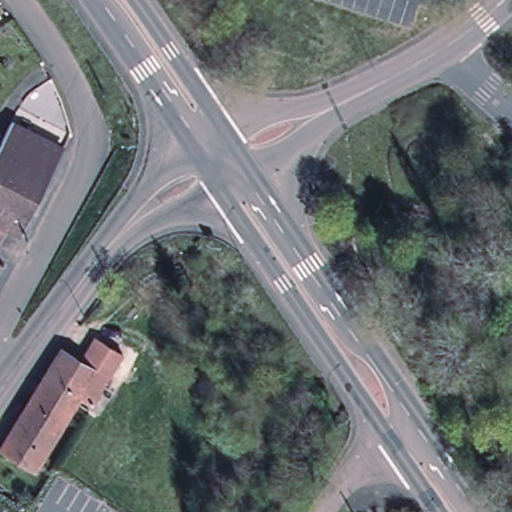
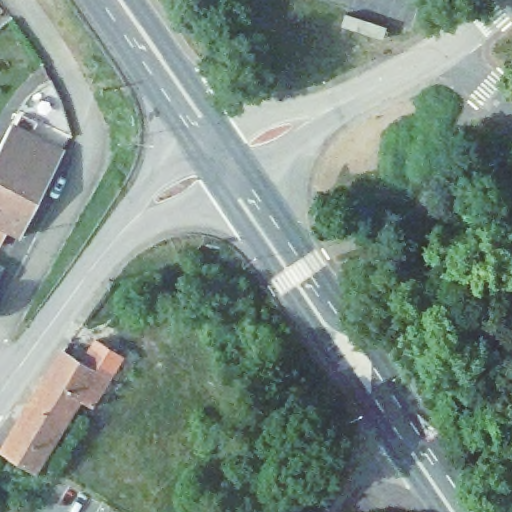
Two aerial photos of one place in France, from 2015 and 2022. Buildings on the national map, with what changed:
unchanged [(15,120),(68,147),(26,230),(12,222),(4,240),(0,238),(0,149),(15,120)]
unchanged [(4,271),(0,279),(0,270),(4,271)]
unchanged [(80,367),(95,344),(123,361),(92,412),(79,403),(75,408),(43,388),(40,387),(62,355),(80,367)]
unchanged [(75,408),(35,475),(2,453),(43,388),(75,408)]

